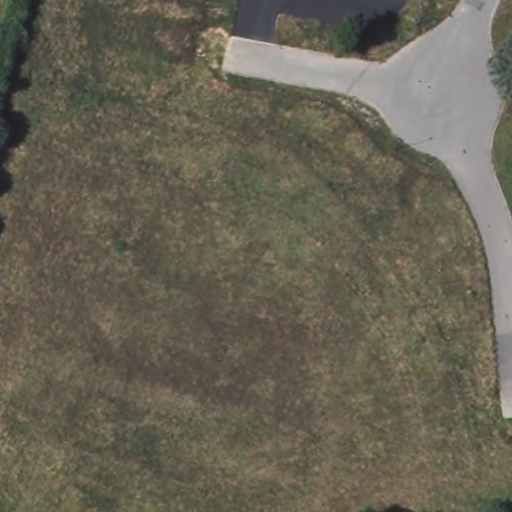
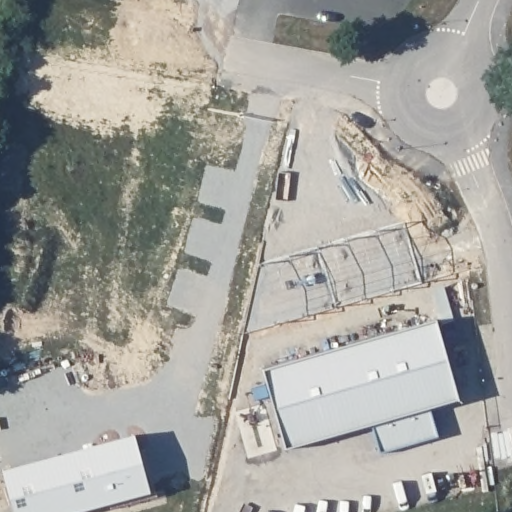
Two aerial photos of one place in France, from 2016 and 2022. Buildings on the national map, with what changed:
new [(263,368),(437,319),(459,397),(430,405),(438,433),(382,451),(373,422),(287,447),(263,368)]

